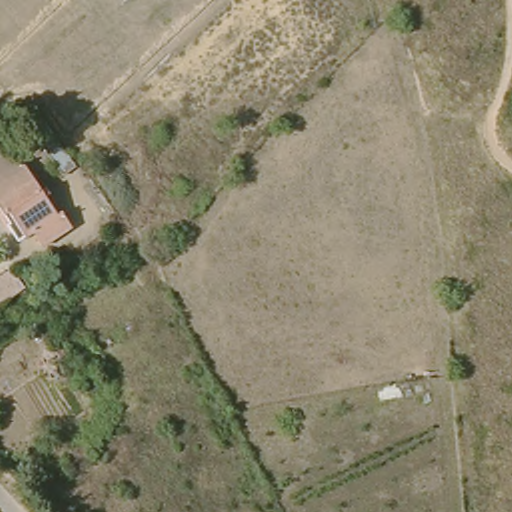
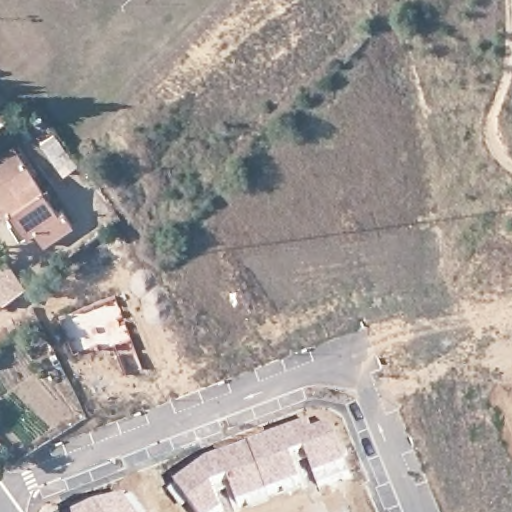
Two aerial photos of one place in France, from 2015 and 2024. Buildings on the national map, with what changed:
unchanged [(77,167),(64,177),(44,150),(32,157),(11,127),(37,109),(77,167)]
unchanged [(62,212),(72,227),(43,246),(34,232),(25,238),(9,213),(4,215),(0,210),(0,158),(14,149),(57,214),(62,212)]
unchanged [(195,206),(185,216),(175,205),(185,196),(195,206)]
new [(0,260),(5,256),(25,285),(0,305),(0,260)]
demolished [(97,347),(85,359),(61,330),(76,316),(97,347)]
new [(209,459),(286,429),(309,421),(312,429),(331,424),(345,465),(313,477),(303,453),(291,459),(300,481),(237,506),(227,484),(215,490),(224,511),(223,512),(192,512),(187,506),(185,507),(170,488),(209,459)]
new [(132,492),(145,511),(144,512),(79,512),(94,508),(122,495),(132,492)]

